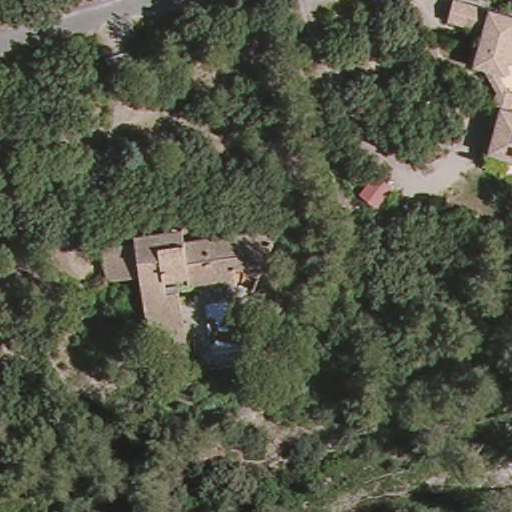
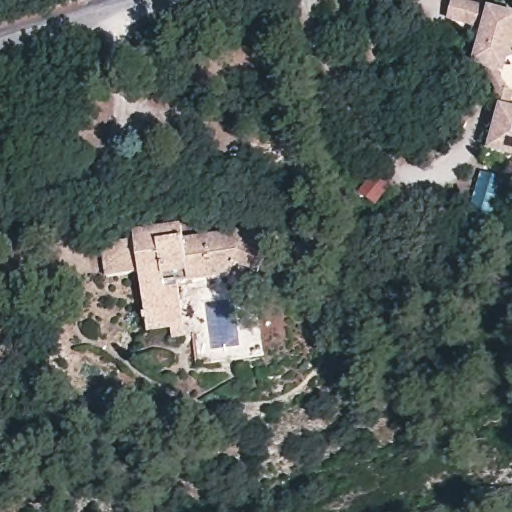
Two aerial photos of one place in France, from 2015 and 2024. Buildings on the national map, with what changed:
unchanged [(492,151),(499,125),(493,123),(503,90),(489,64),(479,61),(486,35),(478,34),(480,24),(453,17),(458,0),(469,0),(486,5),(512,12),(512,60),(509,70),(499,66),(511,89),(512,89),(512,157),(492,151)]
unchanged [(251,283),(226,271),(177,279),(186,330),(148,337),(136,267),(105,273),(99,240),(131,233),(129,225),(181,216),(184,234),(246,223),(249,215),(272,228),(251,283)]

